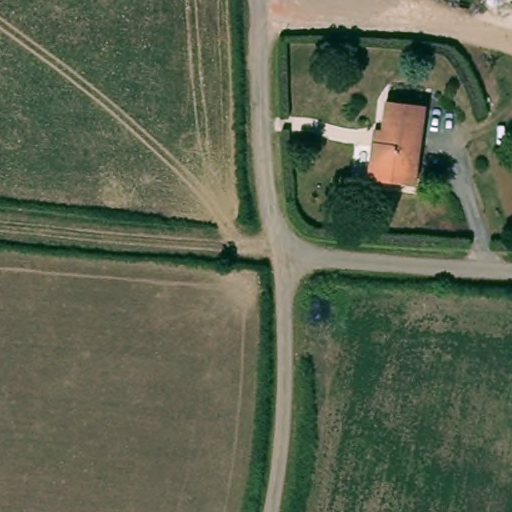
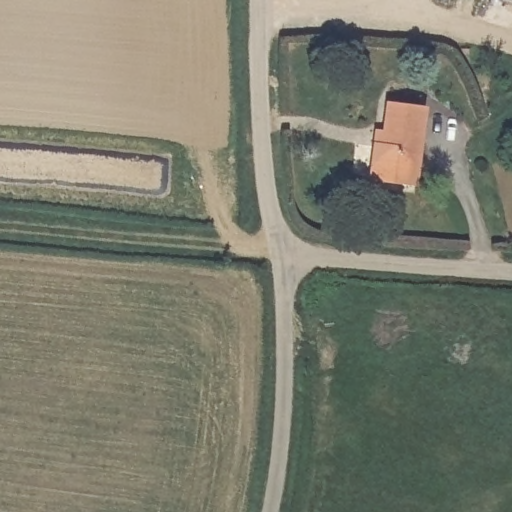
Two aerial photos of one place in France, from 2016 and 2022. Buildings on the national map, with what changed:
unchanged [(380,99),(420,103),(410,182),(362,176),(368,128),(376,129),(380,99)]

